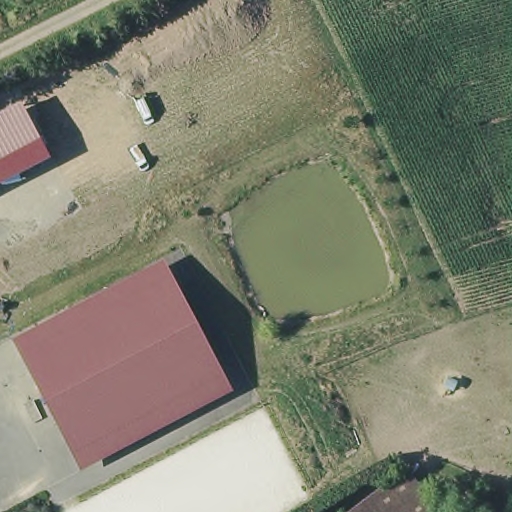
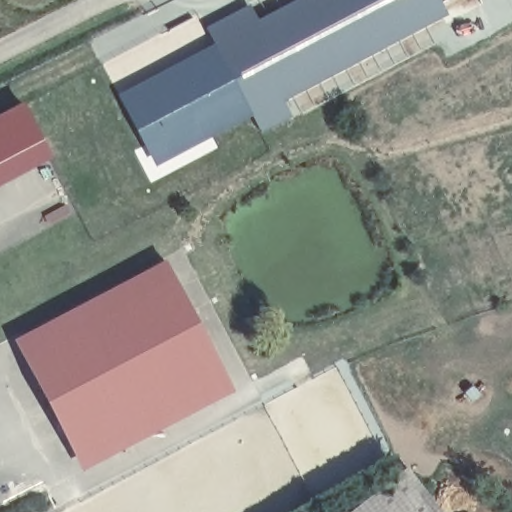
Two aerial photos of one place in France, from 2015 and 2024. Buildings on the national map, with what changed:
new [(214,47),(206,29),(250,8),(259,20),(297,0),(440,0),(449,17),(284,103),(296,122),(261,138),(252,121),(156,167),(118,96),(214,47)]
unchanged [(52,160),(0,186),(0,115),(23,104),(52,160)]
unchanged [(163,259),(234,393),(81,472),(12,338),(163,259)]
unchanged [(440,512),(353,512),(408,469),(440,512)]

